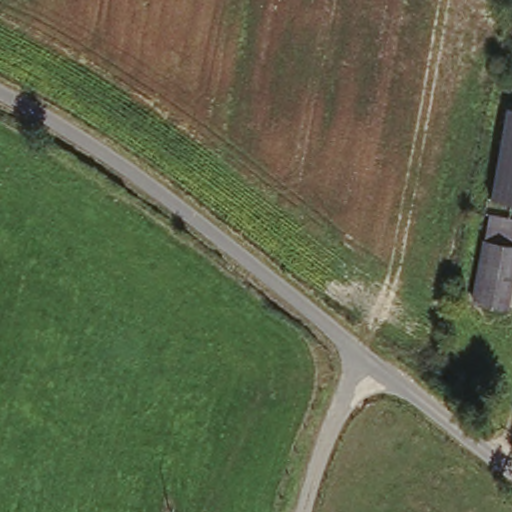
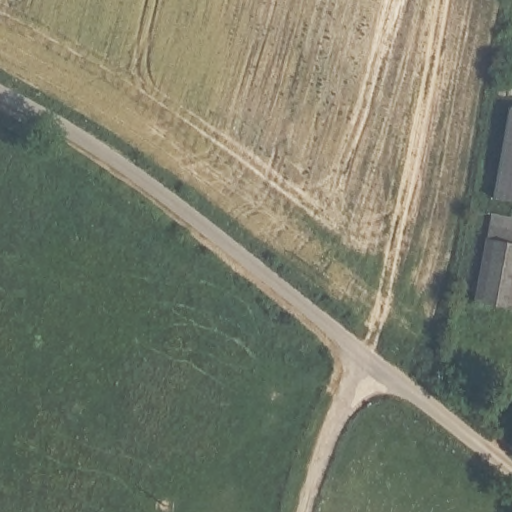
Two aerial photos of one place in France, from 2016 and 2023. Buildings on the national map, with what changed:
unchanged [(512,201),(491,199),(501,114),(512,116),(512,201)]
unchanged [(512,287),(508,308),(473,301),(489,215),(512,219),(512,287)]

